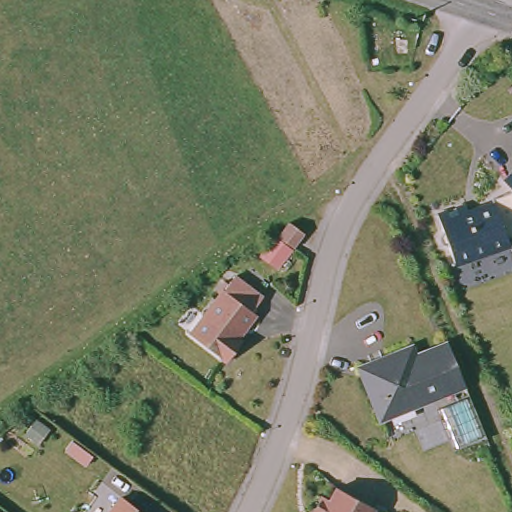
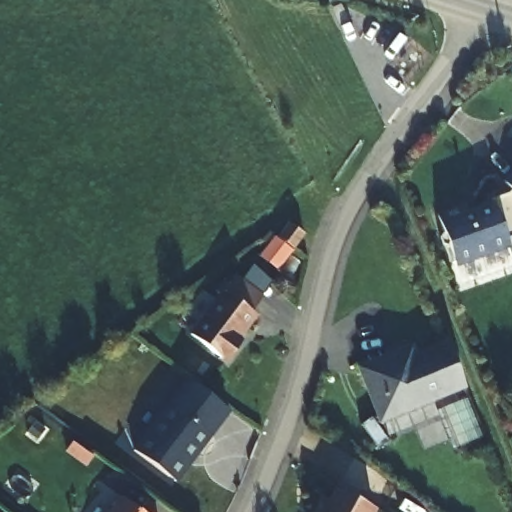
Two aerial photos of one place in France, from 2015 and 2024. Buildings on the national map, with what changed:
unchanged [(466,223),(491,216),(490,210),(506,205),(511,201),(505,190),(512,184),(512,245),(508,247),(510,252),(451,271),(445,254),(440,252),(437,245),(441,240),(435,222),(463,214),(466,223)]
unchanged [(290,222),(304,232),(294,247),(280,237),(290,222)]
unchanged [(277,237),(293,249),(281,265),(265,253),(277,237)]
unchanged [(265,297),(254,312),(257,314),(240,338),(244,341),(229,361),(193,334),(223,295),(219,292),(227,281),(231,284),(237,277),(265,297)]
unchanged [(359,377),(355,370),(377,360),(405,347),(408,356),(444,342),(461,383),(385,415),(375,419),(359,377)]
new [(171,477),(136,450),(190,378),(222,402),(231,410),(198,455),(178,482),(171,477)]
unchanged [(468,396),(484,435),(454,447),(438,407),(468,396)]
unchanged [(329,497),(336,486),(374,507),(371,512),(313,512),(323,494),(329,497)]
unchanged [(133,512),(111,512),(119,502),(133,512)]

